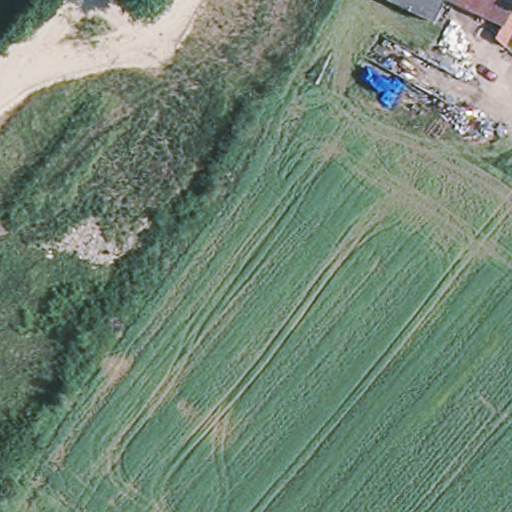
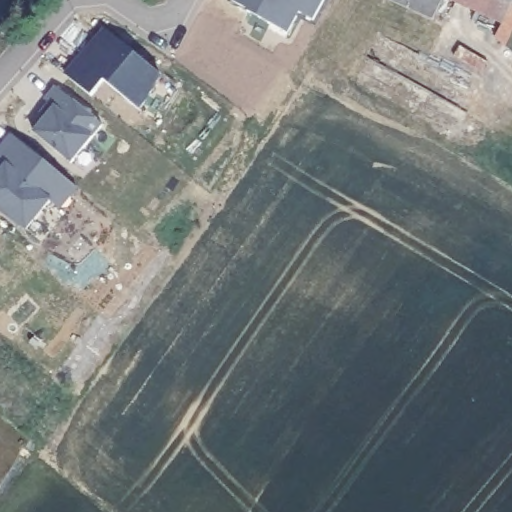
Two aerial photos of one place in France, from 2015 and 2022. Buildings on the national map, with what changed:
new [(299,11),(287,31),(230,0),(323,0),(313,18),(299,11)]
unchanged [(396,0),(443,0),(433,19),(396,0)]
unchanged [(461,4),(452,0),(512,0),(512,27),(504,46),(494,37),(503,24),(461,4)]
new [(60,77),(103,31),(164,77),(141,110),(104,79),(90,97),(60,77)]
new [(30,134),(47,113),(38,106),(54,86),(102,126),(93,139),(71,166),(30,134)]
new [(0,210),(0,171),(5,165),(0,161),(0,145),(10,132),(78,188),(60,211),(50,203),(25,230),(0,210)]

